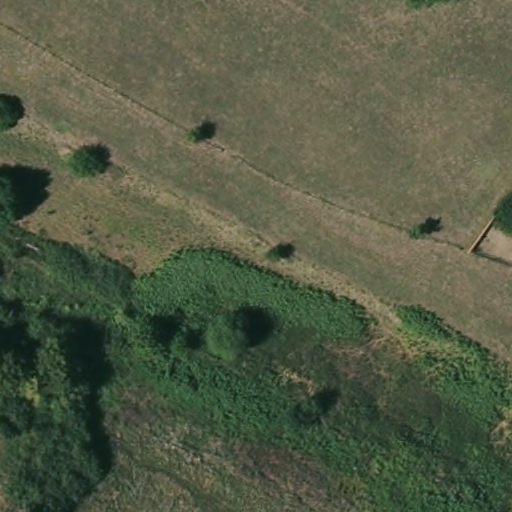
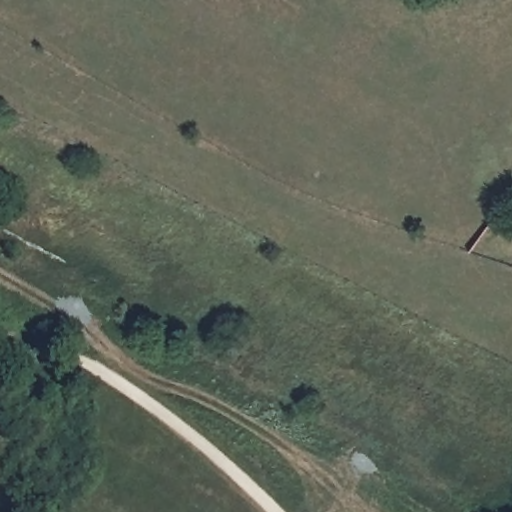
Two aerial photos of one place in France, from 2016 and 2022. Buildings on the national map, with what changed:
[]

